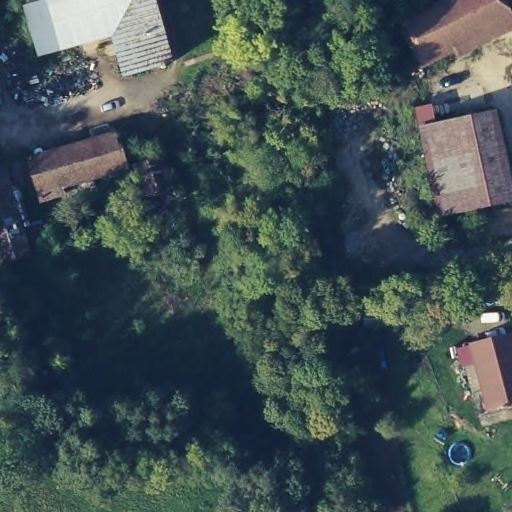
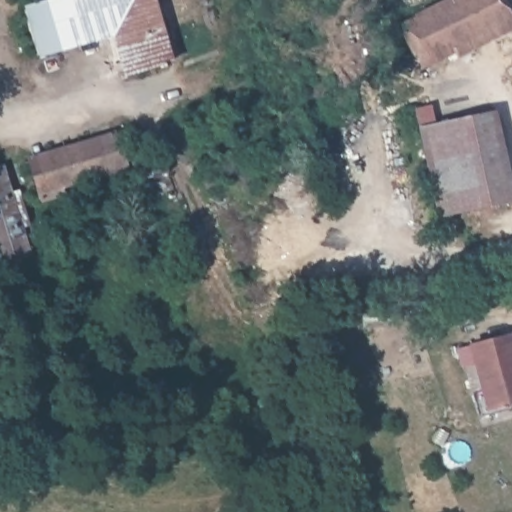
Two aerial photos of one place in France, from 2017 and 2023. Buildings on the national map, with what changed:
unchanged [(130,78),(118,36),(42,57),(29,11),(55,4),(55,0),(154,0),(173,65),(130,78)]
unchanged [(420,66),(403,26),(455,3),(454,0),(503,0),(512,23),(512,26),(420,66)]
unchanged [(432,112),(437,131),(495,119),(512,193),(512,202),(440,218),(437,201),(420,113),(432,112)]
unchanged [(126,169),(59,188),(60,196),(40,202),(28,161),(115,135),(126,169)]
unchanged [(168,157),(190,232),(153,243),(130,171),(168,157)]
unchanged [(10,265),(0,233),(0,172),(13,168),(40,256),(10,265)]
unchanged [(488,396),(475,349),(512,337),(512,388),(488,396)]

